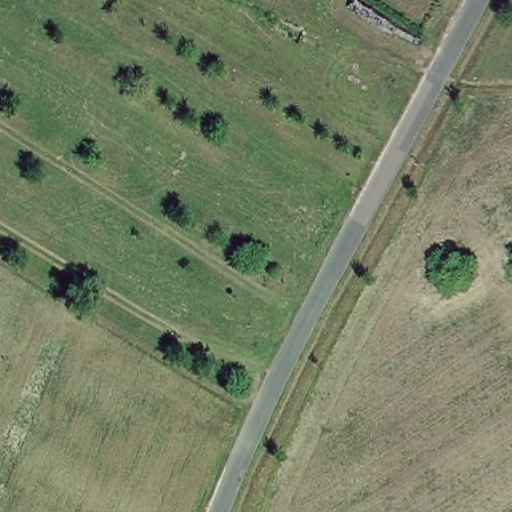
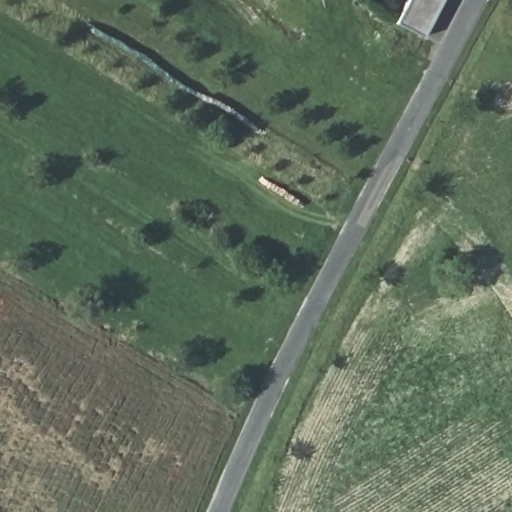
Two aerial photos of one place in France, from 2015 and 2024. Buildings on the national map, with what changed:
new [(396,22),(407,0),(442,0),(424,36),(396,22)]

